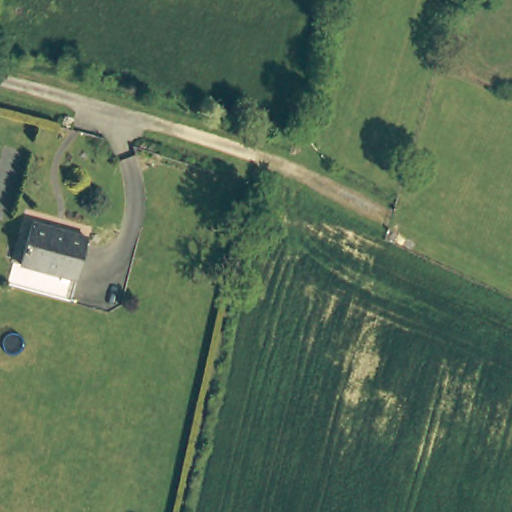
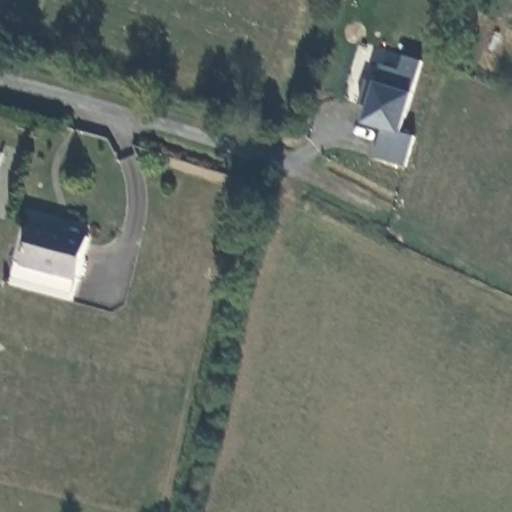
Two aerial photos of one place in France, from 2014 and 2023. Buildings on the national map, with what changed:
new [(409,93),(413,94),(402,132),(415,138),(406,166),(372,157),(380,129),(362,123),(367,106),(360,103),(366,79),(376,82),(382,64),(400,69),(403,56),(422,62),(409,93)]
unchanged [(35,220),(89,237),(77,277),(23,261),(35,220)]

